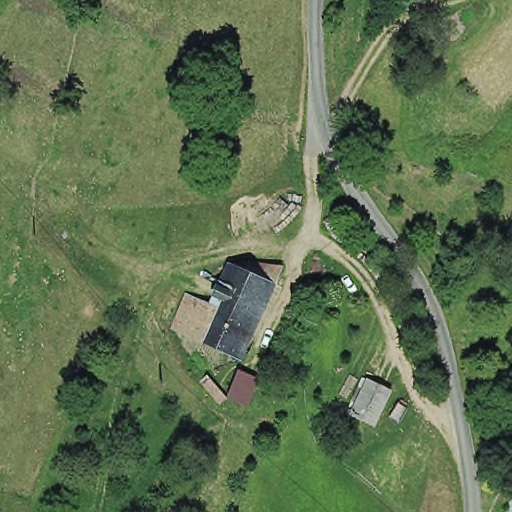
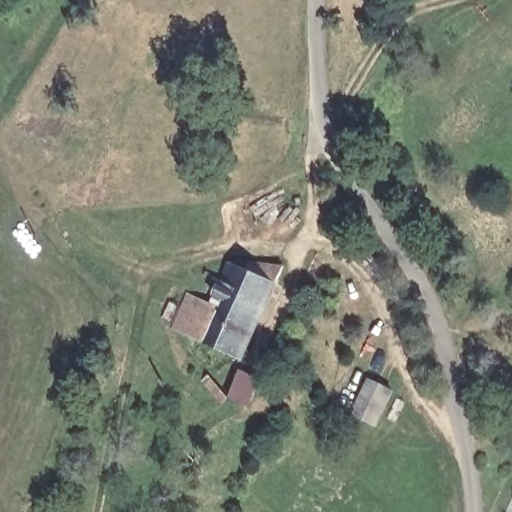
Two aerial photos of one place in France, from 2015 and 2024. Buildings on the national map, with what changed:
unchanged [(217,291),(232,261),(251,268),(255,259),(285,264),(278,280),(263,313),(217,291)]
unchanged [(245,355),(175,323),(190,291),(213,300),(217,291),(263,313),(245,355)]
unchanged [(247,403),(230,395),(239,370),(257,379),(247,403)]
unchanged [(377,421),(355,411),(371,375),(392,385),(377,421)]

